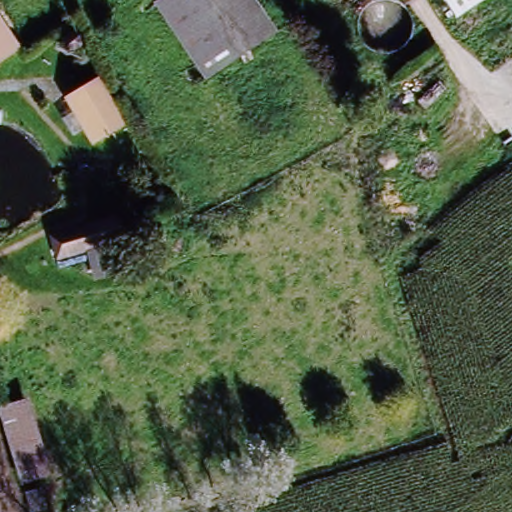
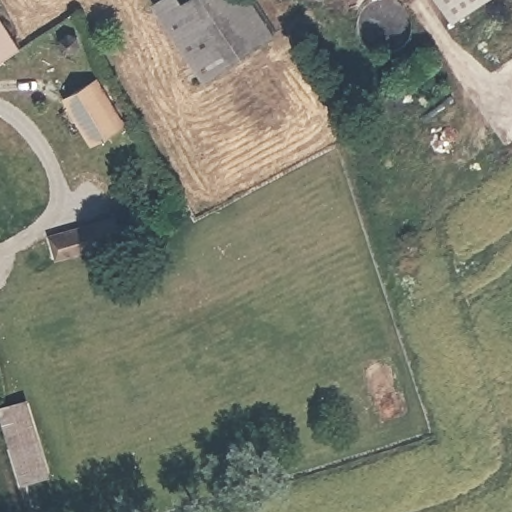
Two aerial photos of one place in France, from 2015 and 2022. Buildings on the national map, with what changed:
unchanged [(152,5),(160,0),(179,0),(182,4),(188,0),(247,0),(271,40),(200,83),(152,5)]
unchanged [(445,9),(440,0),(475,0),(450,16),(445,9)]
unchanged [(17,51),(0,63),(0,25),(17,51)]
unchanged [(73,100),(105,81),(132,128),(100,146),(73,100)]
unchanged [(60,290),(47,237),(105,220),(124,274),(60,290)]
unchanged [(49,476),(29,481),(22,483),(1,409),(7,408),(27,402),(49,476)]

